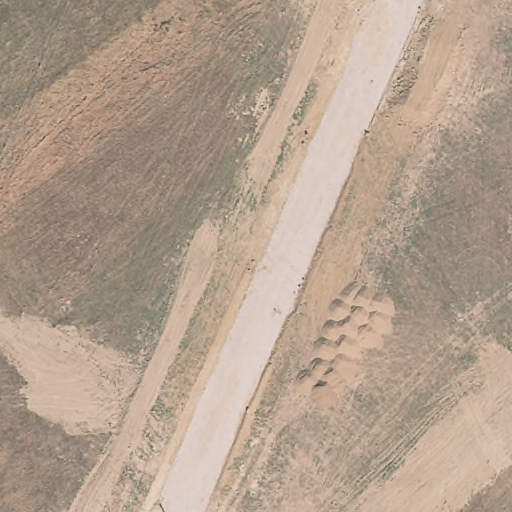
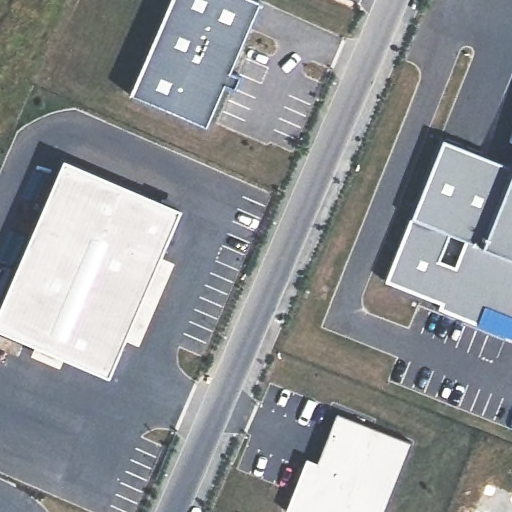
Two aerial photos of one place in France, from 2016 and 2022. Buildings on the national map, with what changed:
new [(258,0),(230,65),(241,69),(235,83),(225,79),(206,121),(129,88),(167,0),(258,0)]
new [(512,161),(512,337),(437,308),(440,301),(383,280),(408,216),(441,138),(510,165),(512,161)]
new [(60,156),(180,207),(159,255),(173,260),(137,344),(121,338),(107,376),(60,356),(59,366),(28,354),(30,343),(0,330),(0,296),(60,156)]
new [(308,455),(318,459),(338,409),(413,439),(384,512),(300,512),(287,506),(304,463),(308,455)]

